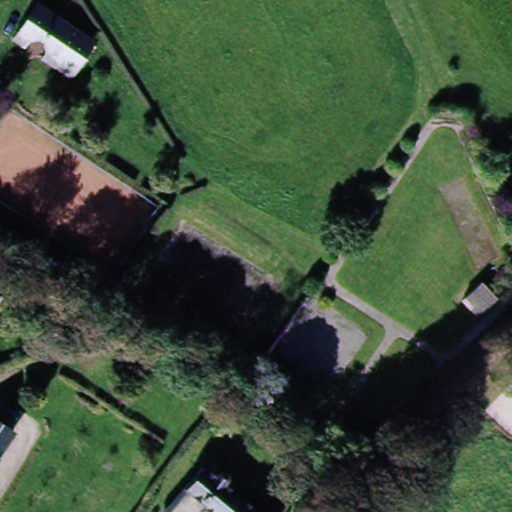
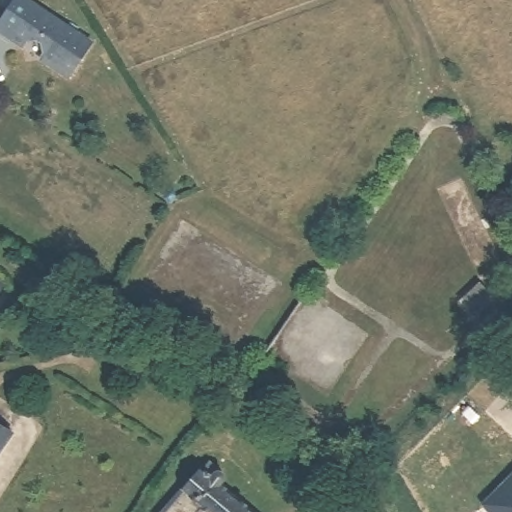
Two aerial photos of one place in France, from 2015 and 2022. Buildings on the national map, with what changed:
unchanged [(37,66),(41,60),(38,46),(22,50),(17,55),(10,52),(12,46),(27,12),(45,19),(87,42),(76,69),(72,76),(69,81),(37,66)]
unchanged [(14,434),(0,453),(0,425),(14,434)]
unchanged [(158,512),(179,488),(172,483),(190,462),(197,467),(202,459),(223,474),(215,485),(202,477),(187,498),(199,506),(194,512),(158,512)]
unchanged [(252,512),(206,512),(199,506),(187,498),(202,477),(215,485),(252,512)]
new [(512,479),(512,512),(489,512),(485,505),(512,479)]

